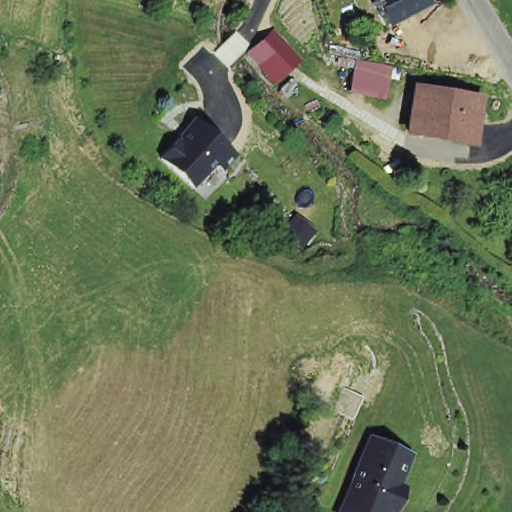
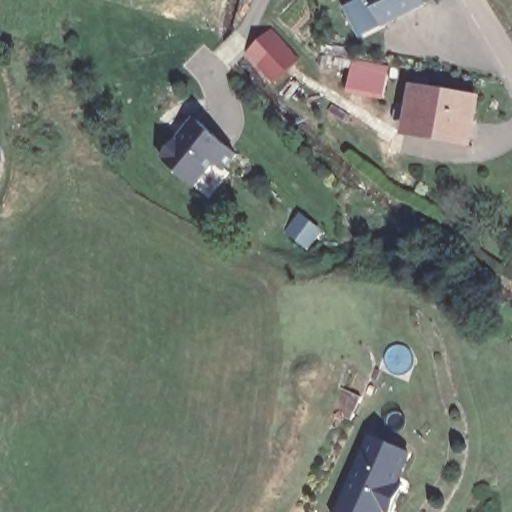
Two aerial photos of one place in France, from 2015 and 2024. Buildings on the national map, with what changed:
unchanged [(427,5),(383,29),(369,0),(425,0),(427,5)]
unchanged [(277,79),(253,46),(278,27),(302,60),(277,79)]
unchanged [(372,58),(385,60),(381,89),(346,84),(350,55),(372,58)]
unchanged [(405,128),(406,120),(414,82),(480,96),(470,141),(446,136),(405,128)]
unchanged [(224,165),(223,165),(218,161),(212,161),(195,183),(161,155),(176,136),(178,138),(196,117),(236,150),(224,165)]
unchanged [(372,425),(412,442),(397,475),(406,480),(396,503),(386,500),(381,512),(334,512),(340,498),(372,425)]

